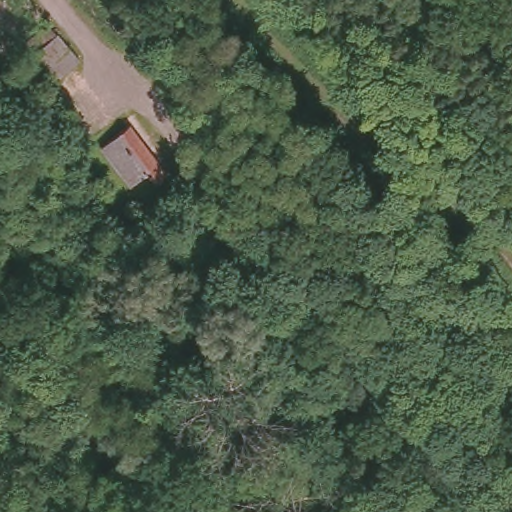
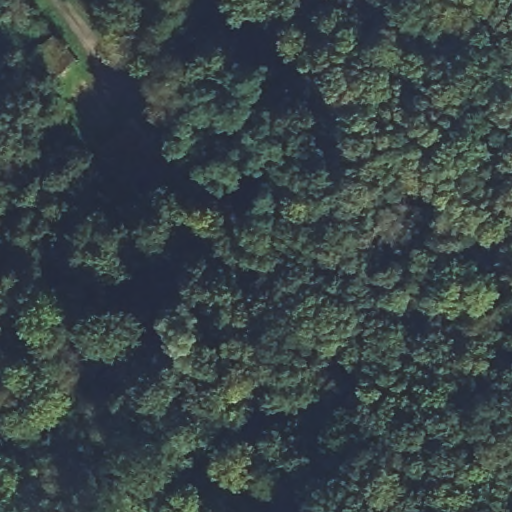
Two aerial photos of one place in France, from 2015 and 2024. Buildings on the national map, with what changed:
unchanged [(52,44),(57,39),(80,64),(57,84),(10,28),(27,14),(52,44)]
unchanged [(167,175),(155,184),(144,170),(139,174),(115,144),(130,131),(167,175)]
unchanged [(325,420),(314,428),(307,421),(317,412),(325,420)]

